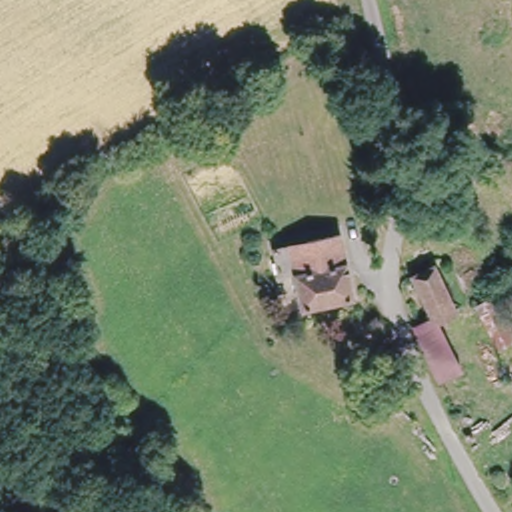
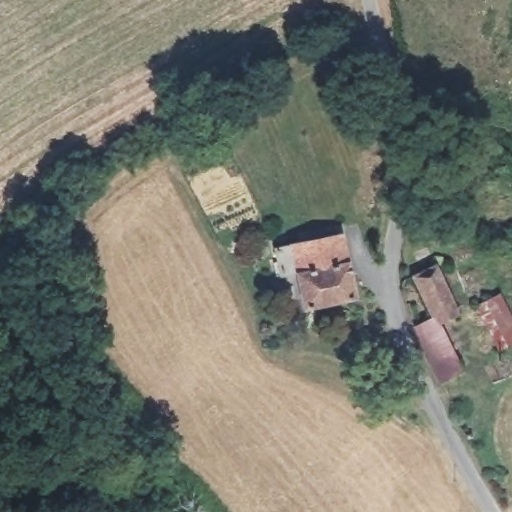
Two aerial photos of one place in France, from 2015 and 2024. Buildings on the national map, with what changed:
unchanged [(335,233),(348,296),(301,307),(288,244),(335,233)]
unchanged [(417,269),(425,266),(428,274),(459,260),(468,279),(484,273),(512,335),(512,346),(502,352),(481,308),(440,325),(465,377),(442,388),(441,387),(421,338),(410,284),(419,281),(417,269)]

